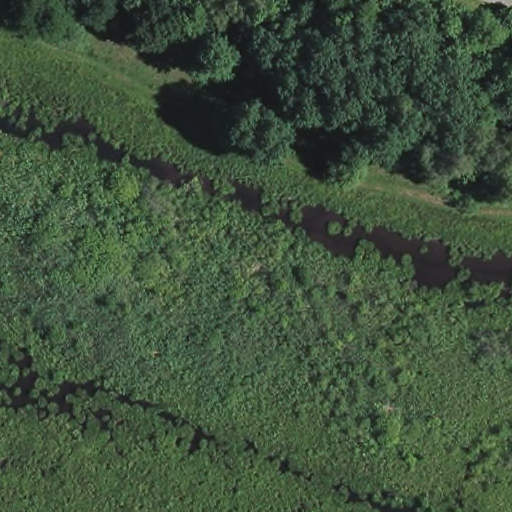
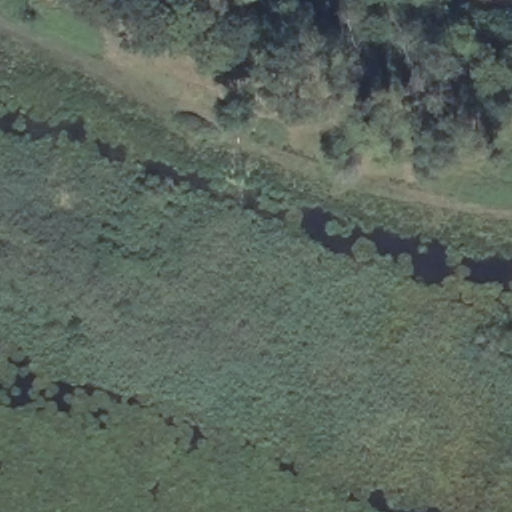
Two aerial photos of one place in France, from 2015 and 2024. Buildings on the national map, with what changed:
[]

